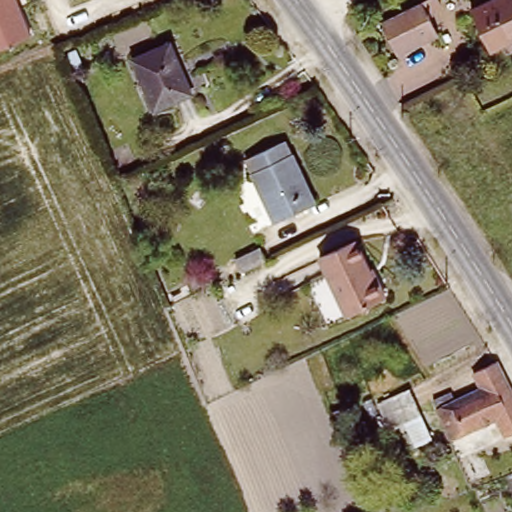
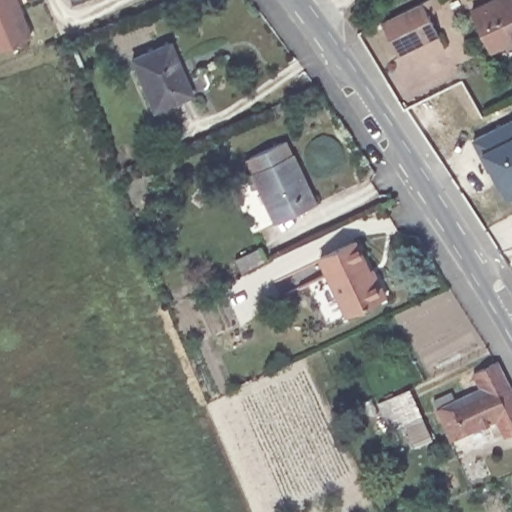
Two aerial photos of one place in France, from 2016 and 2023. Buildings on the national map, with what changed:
unchanged [(0,46),(0,0),(18,0),(31,34),(0,46)]
unchanged [(425,0),(439,0),(445,12),(429,19),(439,39),(400,59),(380,22),(420,2),(422,1),(425,0)]
unchanged [(512,0),(512,41),(494,50),(474,15),(503,0),(512,0)]
unchanged [(167,36),(185,73),(190,85),(155,100),(144,79),(132,53),(167,36)]
new [(507,202),(503,187),(500,188),(481,150),(472,139),(512,118),(512,199),(507,202)]
unchanged [(311,194),(275,212),(254,173),(245,155),(283,137),(311,194)]
unchanged [(367,267),(372,267),(382,289),(342,306),(320,261),(319,257),(317,250),(352,234),(367,267)]
unchanged [(259,248),(265,260),(241,272),(235,259),(259,248)]
unchanged [(480,386),(474,373),(474,372),(500,358),(512,376),(512,429),(507,432),(497,418),(454,439),(435,407),(434,404),(452,395),(455,399),(480,386)]
unchanged [(407,439),(404,434),(392,440),(377,417),(392,410),(399,407),(410,401),(435,447),(419,456),(416,457),(407,439)]

